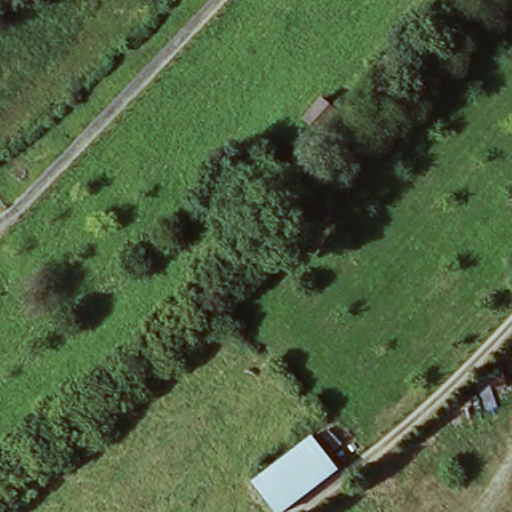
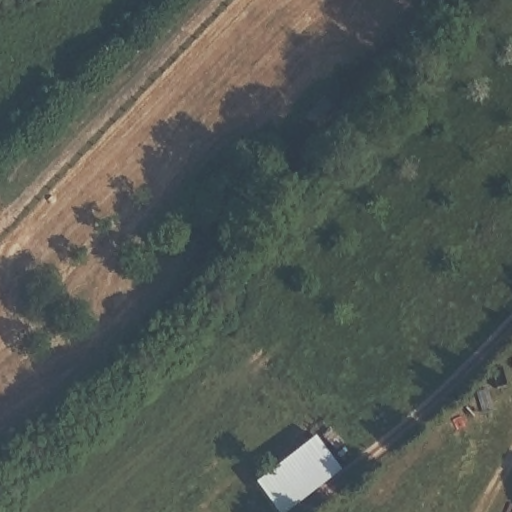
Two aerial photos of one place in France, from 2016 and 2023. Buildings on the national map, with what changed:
unchanged [(310,114),(328,130),(306,155),(286,137),(310,114)]
unchanged [(337,466),(272,512),(269,512),(247,482),(315,435),(337,466)]

